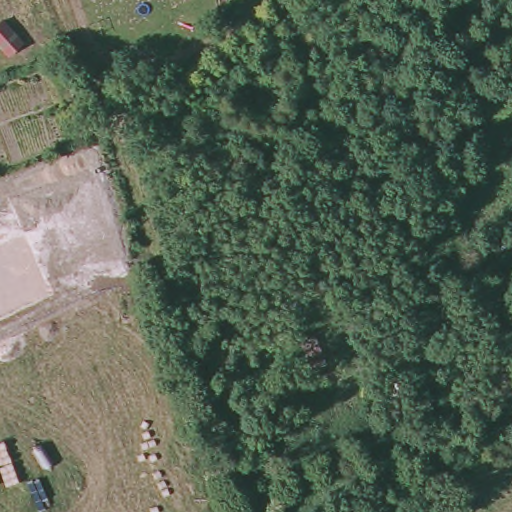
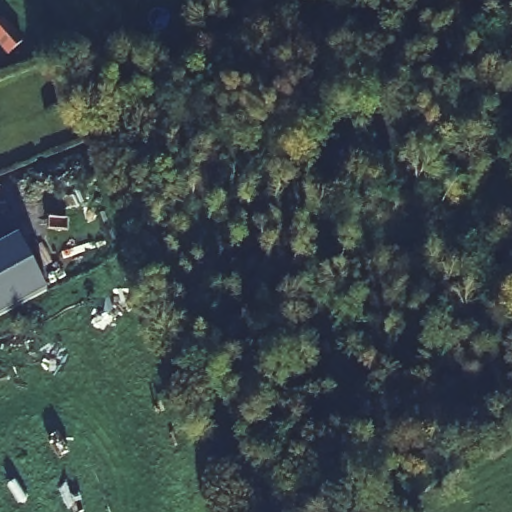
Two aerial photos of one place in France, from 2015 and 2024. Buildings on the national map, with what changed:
unchanged [(23,42),(10,55),(0,44),(0,23),(3,20),(23,42)]
new [(0,315),(0,245),(18,235),(47,290),(0,315)]

